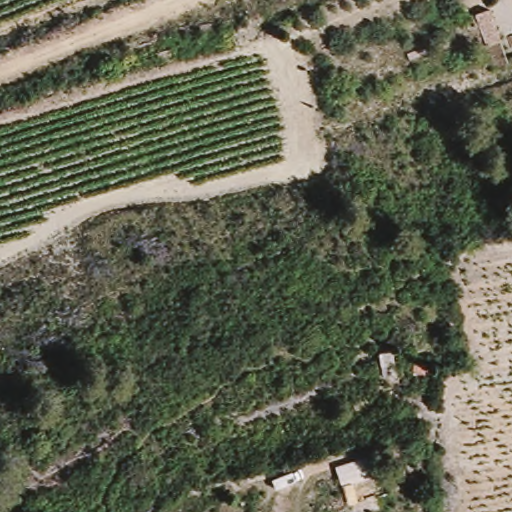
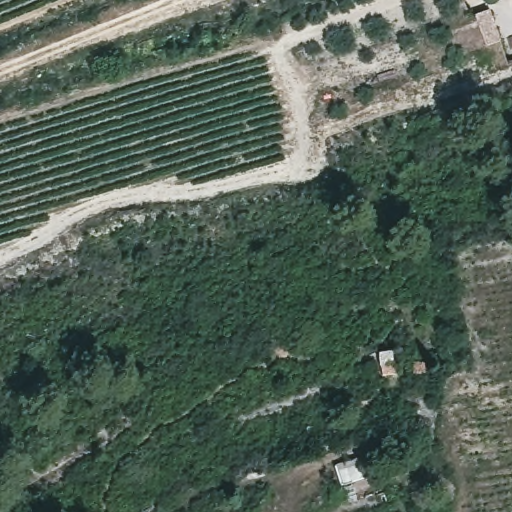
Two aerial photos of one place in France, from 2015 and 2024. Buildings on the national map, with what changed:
unchanged [(484,9),(487,23),(497,21),(500,40),(485,45),(479,10),(484,9)]
unchanged [(379,354),(390,352),(393,363),(396,362),(398,373),(383,377),(379,354)]
unchanged [(379,471),(390,502),(364,512),(349,512),(339,486),(379,471)]

